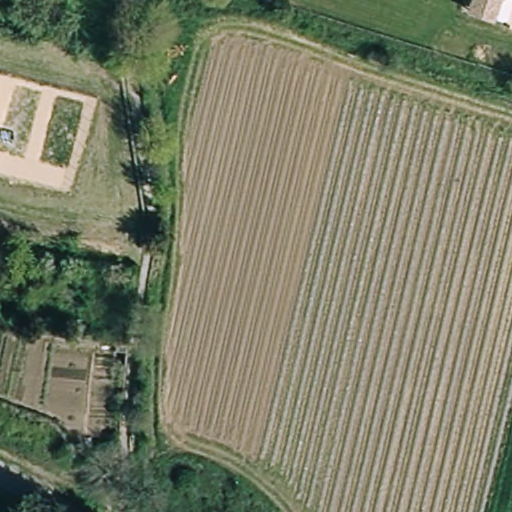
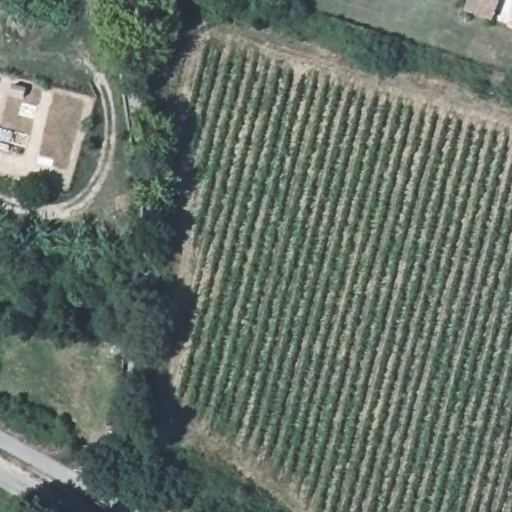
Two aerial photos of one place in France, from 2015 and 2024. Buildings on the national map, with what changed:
unchanged [(494,0),(489,14),(467,6),(468,0),(494,0)]

